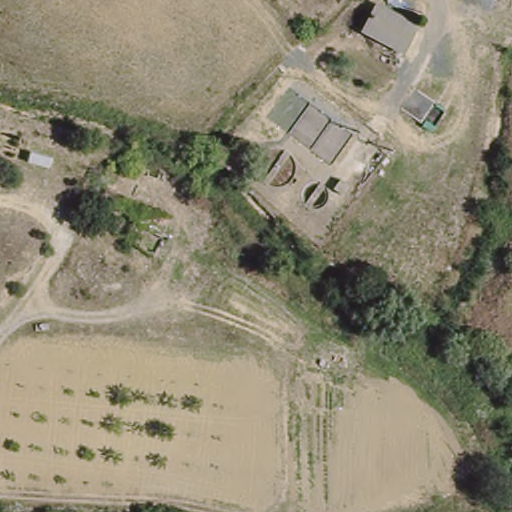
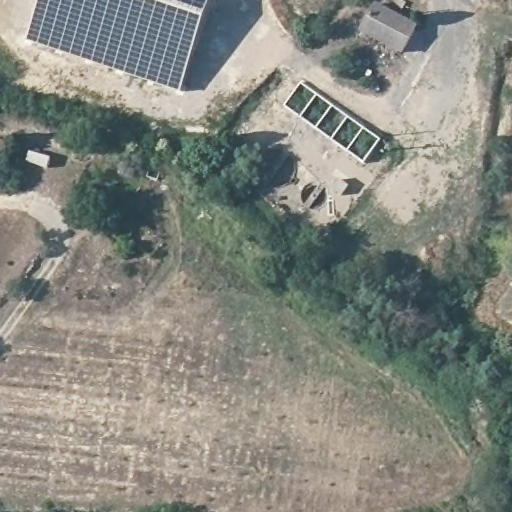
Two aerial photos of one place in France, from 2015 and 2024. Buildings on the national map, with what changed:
new [(213,0),(182,94),(26,41),(40,0),(213,0)]
unchanged [(414,35),(399,60),(360,37),(375,11),(414,35)]
unchanged [(335,181),(347,189),(337,202),(326,195),(335,181)]

